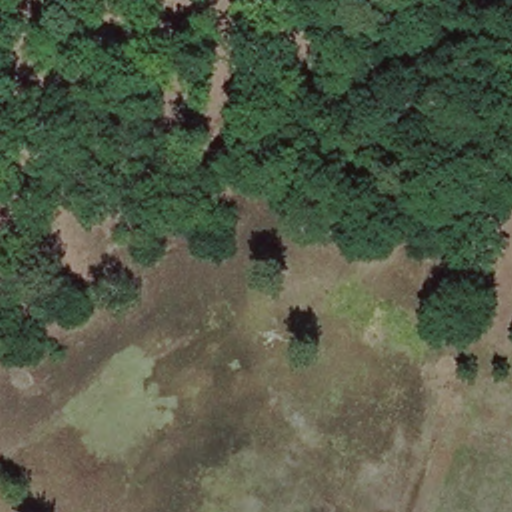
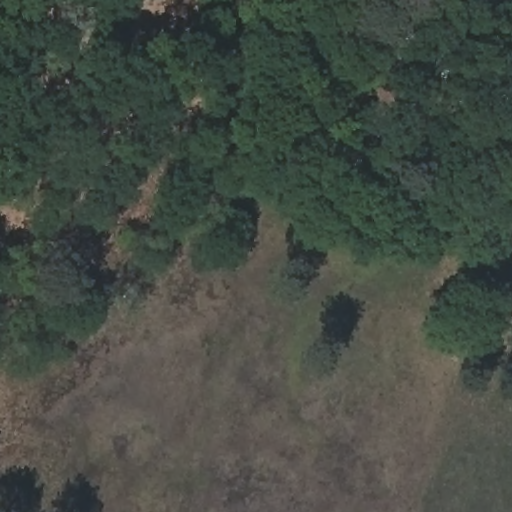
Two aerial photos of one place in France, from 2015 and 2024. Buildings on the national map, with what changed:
unchanged [(452,50),(446,75),(411,64),(417,40),(452,50)]

